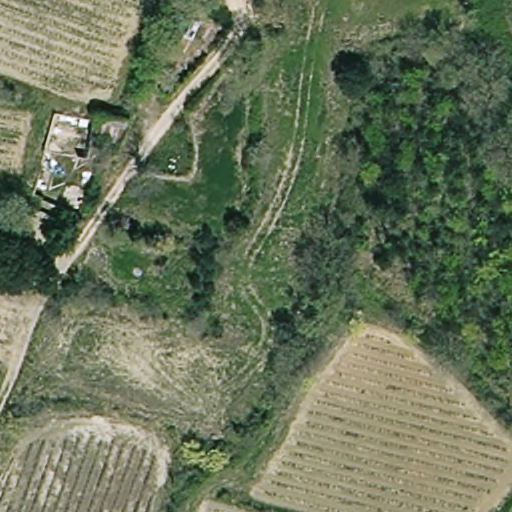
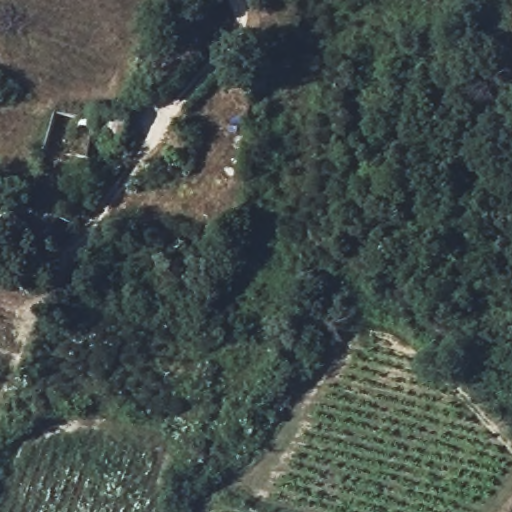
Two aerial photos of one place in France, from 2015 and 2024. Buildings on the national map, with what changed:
unchanged [(121,148),(91,139),(97,114),(130,123),(121,148)]

